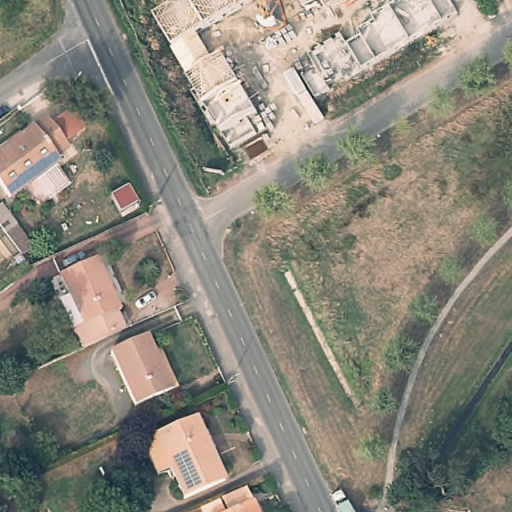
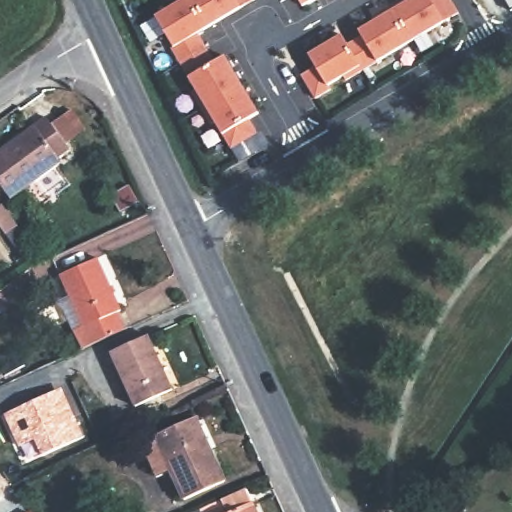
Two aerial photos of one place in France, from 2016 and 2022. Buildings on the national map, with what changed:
unchanged [(257,0),(242,9),(201,34),(216,60),(226,54),(261,114),(252,119),(260,134),(232,150),(223,134),(189,76),(172,49),(174,47),(157,15),(181,0),(257,0)]
unchanged [(299,0),(318,0),(304,9),(299,0)]
unchanged [(348,43),(362,35),(358,30),(408,0),(451,0),(460,14),(447,23),(378,62),(317,100),(301,75),(317,66),(310,53),(343,34),(348,43)]
unchanged [(506,0),(512,0),(512,10),(506,0)]
unchanged [(73,110),(86,130),(66,144),(52,124),(73,110)]
unchanged [(70,150),(57,159),(60,162),(9,198),(0,185),(0,152),(49,119),(70,150)]
unchanged [(72,293),(64,274),(101,257),(124,308),(121,310),(129,328),(85,347),(77,328),(62,297),(72,293)]
unchanged [(150,339),(174,393),(137,410),(112,355),(150,339)]
new [(2,413),(61,388),(82,436),(42,455),(34,438),(17,446),(2,413)]
unchanged [(192,416),(221,480),(180,498),(152,435),(192,416)]
unchanged [(248,493),(254,506),(256,512),(205,512),(248,493)]

